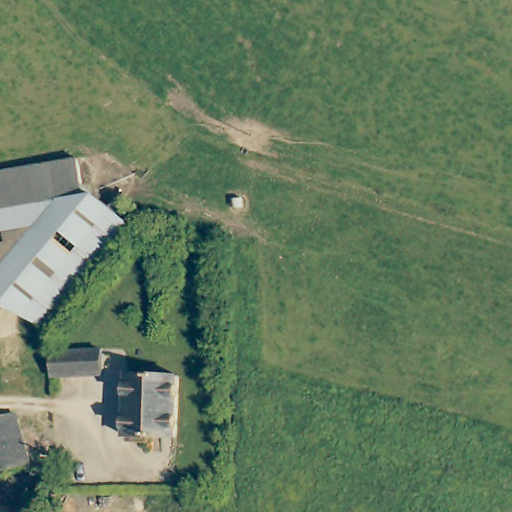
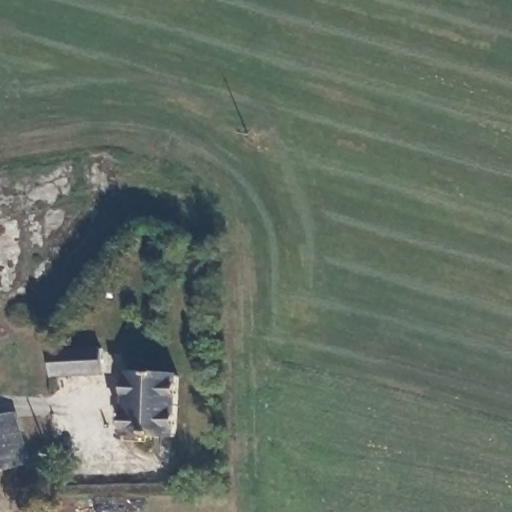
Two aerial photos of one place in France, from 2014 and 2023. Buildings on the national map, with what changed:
demolished [(86,192),(96,190),(132,220),(48,323),(20,298),(0,302),(0,169),(80,156),(86,192)]
unchanged [(105,371),(54,374),(54,348),(104,346),(105,371)]
unchanged [(181,373),(178,434),(127,432),(130,372),(181,373)]
unchanged [(2,417),(20,414),(34,460),(16,466),(0,470),(0,418),(2,417)]

